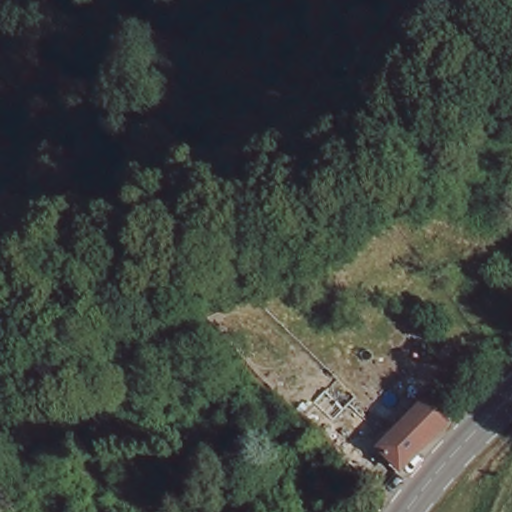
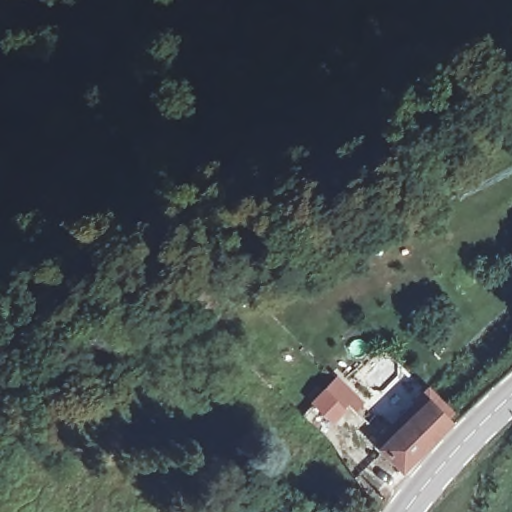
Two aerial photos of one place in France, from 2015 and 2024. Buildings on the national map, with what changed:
new [(310,402),(323,387),(337,373),(364,400),(355,409),(348,402),(344,407),(345,408),(332,423),(310,402)]
unchanged [(448,420),(401,469),(379,450),(427,401),(437,410),(448,420)]

